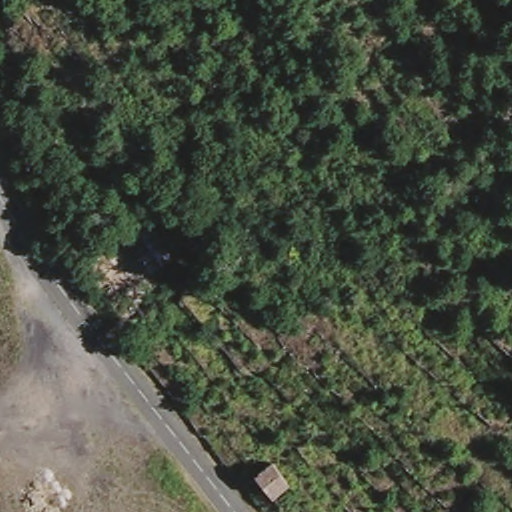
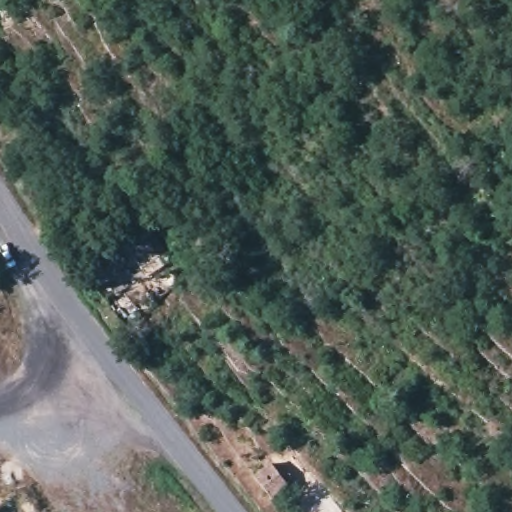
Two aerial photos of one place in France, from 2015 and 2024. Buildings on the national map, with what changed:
unchanged [(294,490),(275,504),(257,481),(275,466),(294,490)]

